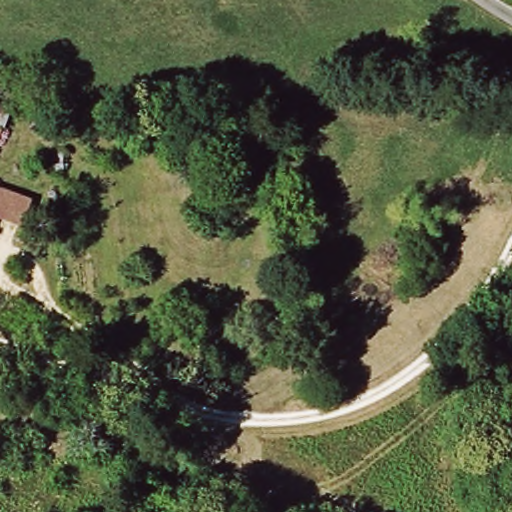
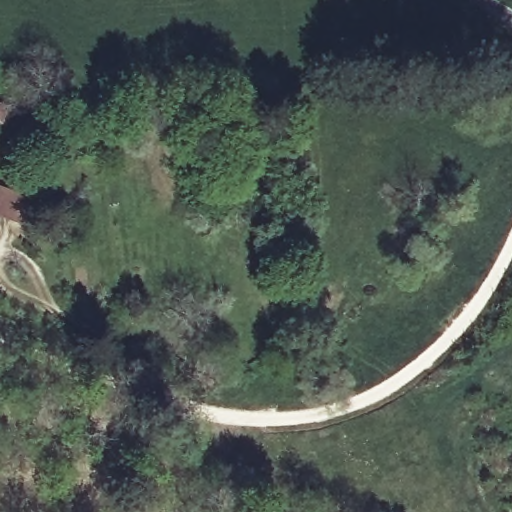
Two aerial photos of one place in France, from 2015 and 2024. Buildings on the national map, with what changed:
unchanged [(0,123),(6,125),(0,141),(0,123)]
unchanged [(27,198),(18,227),(8,224),(0,221),(0,189),(18,195),(27,198)]

